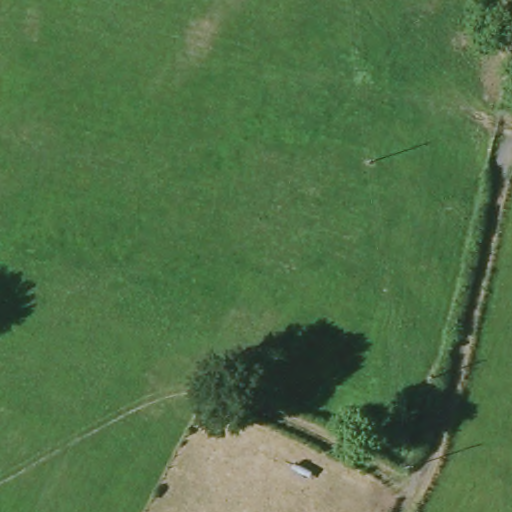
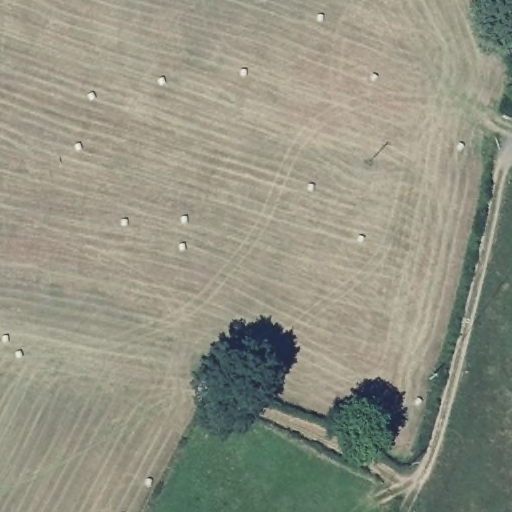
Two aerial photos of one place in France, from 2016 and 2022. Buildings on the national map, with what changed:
[]

